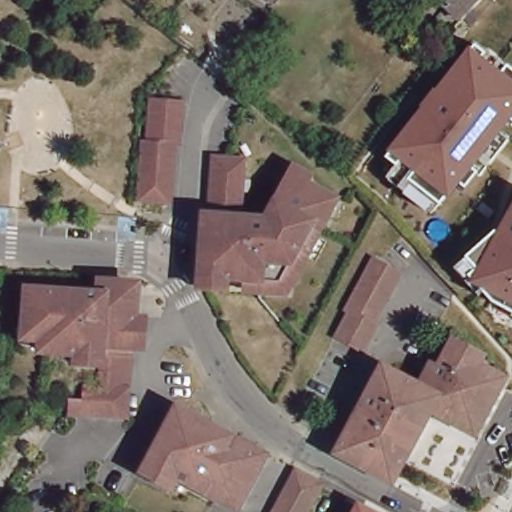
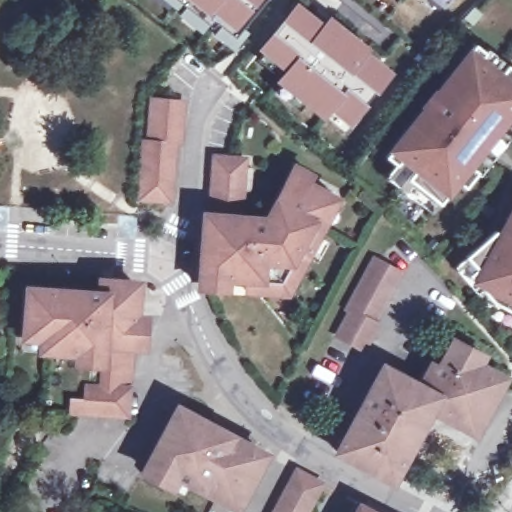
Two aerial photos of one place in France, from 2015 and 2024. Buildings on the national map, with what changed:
new [(231,38),(212,24),(208,29),(175,2),(176,0),(263,0),(231,38)]
new [(442,7),(434,0),(448,0),(442,7)]
demolished [(468,4),(454,19),(440,5),(444,0),(472,0),(468,4)]
new [(310,18),(308,20),(320,30),(328,19),(355,41),(350,47),(360,54),(361,52),(387,73),(347,123),(328,107),(321,116),(278,81),(287,71),(260,49),(295,6),(310,18)]
unchanged [(471,45),(500,71),(505,66),(512,71),(512,123),(510,121),(502,132),(511,141),(487,169),(482,166),(465,190),(457,185),(435,213),(386,179),(397,166),(385,156),(471,45)]
unchanged [(138,198),(142,141),(148,141),(151,99),(181,101),(179,127),(178,145),(177,144),(173,144),(170,186),(168,200),(161,199),(138,198)]
unchanged [(250,286),(250,274),(230,273),(229,285),(210,284),(201,283),(202,271),(205,237),(207,208),(211,209),(216,151),(246,154),(241,211),(267,213),(296,162),(313,171),(310,178),(335,193),(341,197),(326,223),(293,277),(286,288),(250,286)]
unchanged [(488,309),(473,295),(480,290),(452,269),(496,228),(512,201),(512,319),(488,309)]
unchanged [(398,271),(372,321),(377,323),(363,349),(337,335),(350,310),(346,307),(372,257),(398,271)]
unchanged [(85,402),(86,388),(100,389),(102,370),(73,367),(74,357),(41,355),(38,350),(39,338),(21,336),(24,304),(29,304),(30,292),(96,296),(97,284),(123,286),(130,287),(136,292),(135,318),(132,351),(130,351),(125,419),(86,417),(83,417),(66,415),(69,401),(85,402)]
unchanged [(377,361),(413,379),(420,365),(429,370),(448,334),(477,349),(472,358),(490,367),(485,375),(495,380),(474,420),(465,415),(460,423),(425,404),(396,459),(389,454),(341,429),(377,361)]
unchanged [(205,421),(205,423),(265,455),(238,508),(230,503),(229,505),(176,477),(170,489),(145,475),(151,463),(148,462),(177,406),(205,421)]
unchanged [(389,454),(380,472),(332,447),(341,429),(389,454)]
unchanged [(285,483),(292,470),(296,472),(317,484),(310,497),(302,512),(280,512),(272,508),(285,483)]
unchanged [(368,512),(358,512),(360,508),(368,512)]
unchanged [(271,512),(272,511),(274,512),(271,512)]

